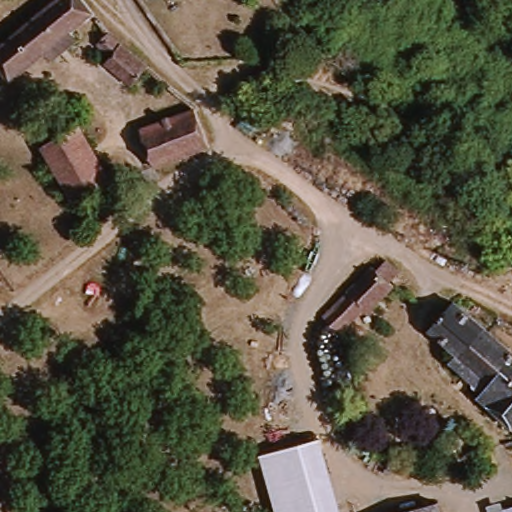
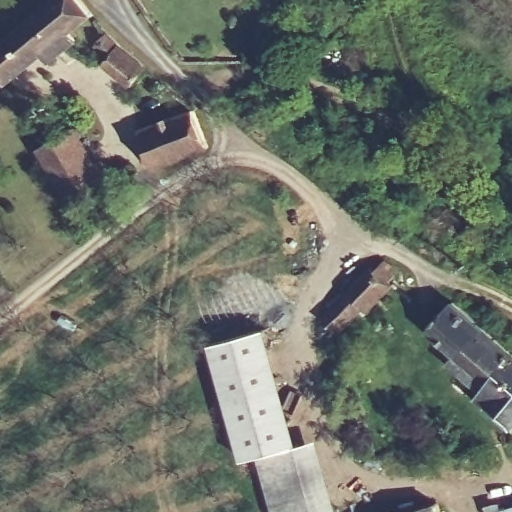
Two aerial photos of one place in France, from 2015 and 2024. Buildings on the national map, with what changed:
unchanged [(14,80),(0,63),(0,47),(56,0),(88,0),(96,10),(14,80)]
unchanged [(105,57),(109,53),(97,40),(108,28),(170,80),(154,99),(105,57)]
unchanged [(159,165),(145,128),(203,106),(216,144),(159,165)]
unchanged [(114,180),(81,199),(49,147),(83,129),(114,180)]
unchanged [(373,311),(348,334),(332,320),(381,268),(391,257),(396,262),(408,273),(400,282),(404,287),(377,316),(373,311)]
unchanged [(434,328),(442,318),(457,302),(490,330),(512,350),(512,421),(483,395),(488,390),(458,361),(464,356),(434,328)]
new [(259,458),(246,461),(212,344),(268,329),(300,446),(259,458)]
unchanged [(320,440),(339,512),(274,512),(259,458),(320,440)]
unchanged [(446,512),(415,512),(444,504),(446,512)]
unchanged [(505,506),(512,504),(512,512),(491,512),(491,510),(505,506)]

